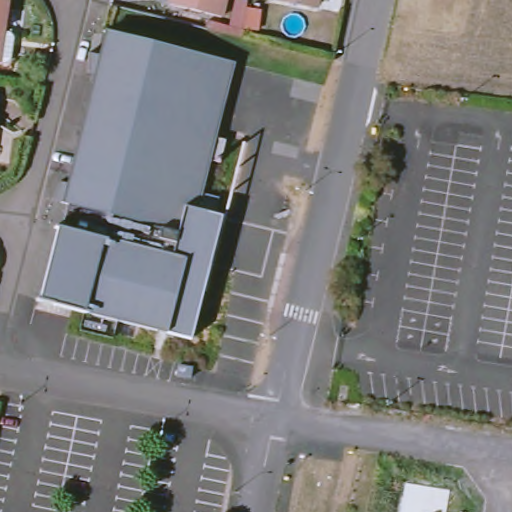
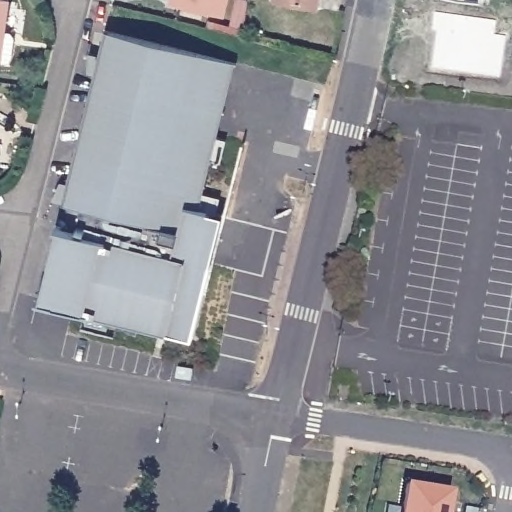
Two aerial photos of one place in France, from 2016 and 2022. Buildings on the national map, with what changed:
unchanged [(0,20),(0,0),(3,0),(0,20)]
unchanged [(171,0),(220,0),(217,11),(171,0)]
unchanged [(286,0),(312,0),(310,5),(286,0)]
new [(481,2),(471,0),(481,0),(481,2)]
new [(426,70),(435,11),(496,22),(495,35),(505,35),(499,76),(426,70)]
unchanged [(235,61),(199,210),(182,206),(152,329),(62,305),(84,222),(87,211),(59,202),(102,26),(235,61)]
unchanged [(9,39),(5,60),(1,63),(0,63),(0,33),(5,34),(9,39)]
unchanged [(195,338),(152,329),(182,206),(199,210),(222,216),(195,338)]
unchanged [(61,222),(84,222),(62,305),(39,300),(61,222)]
unchanged [(191,381),(178,379),(180,368),(193,370),(191,381)]
unchanged [(446,512),(401,512),(406,484),(450,491),(446,512)]

